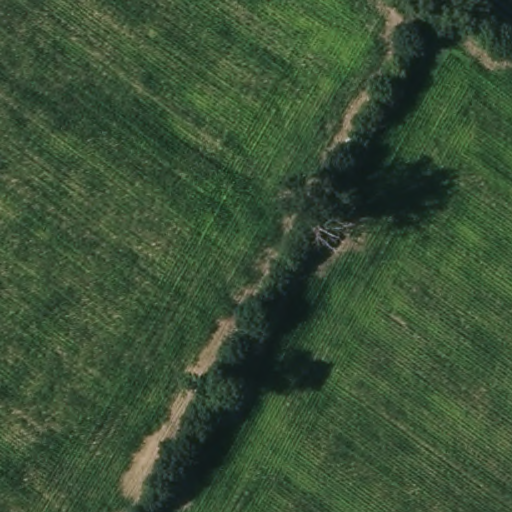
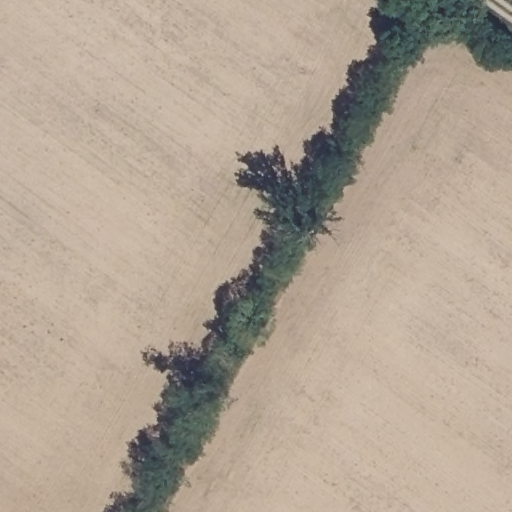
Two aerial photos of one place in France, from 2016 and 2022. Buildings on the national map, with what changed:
unchanged [(433,43),(400,23),(415,0),(418,0),(448,19),(433,43)]

